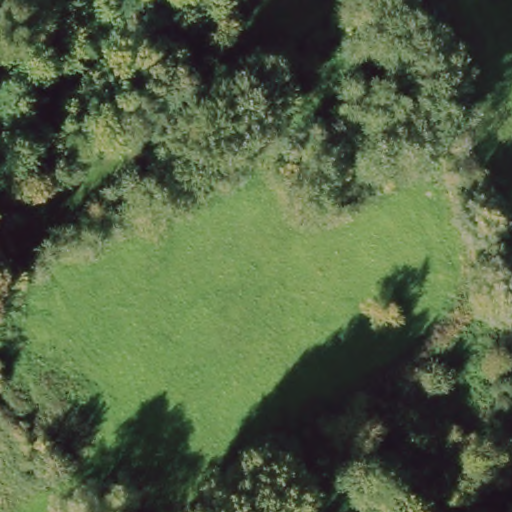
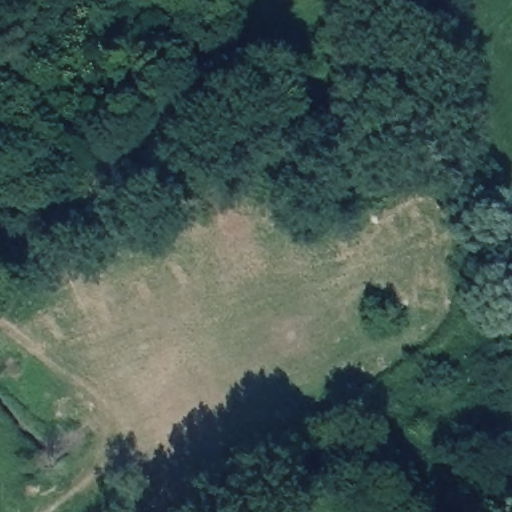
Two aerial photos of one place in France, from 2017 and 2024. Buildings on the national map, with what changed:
unchanged [(332,512),(335,510),(337,512),(332,512)]

